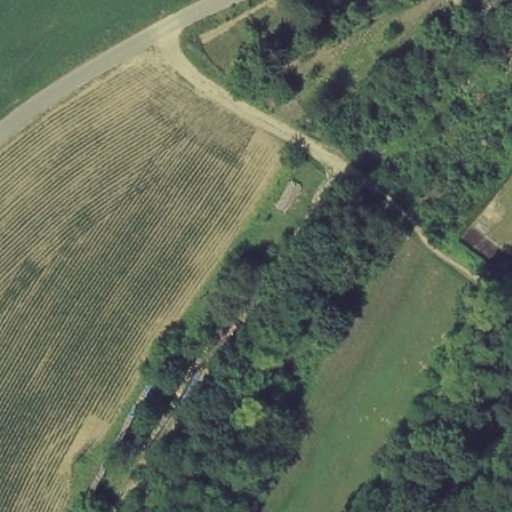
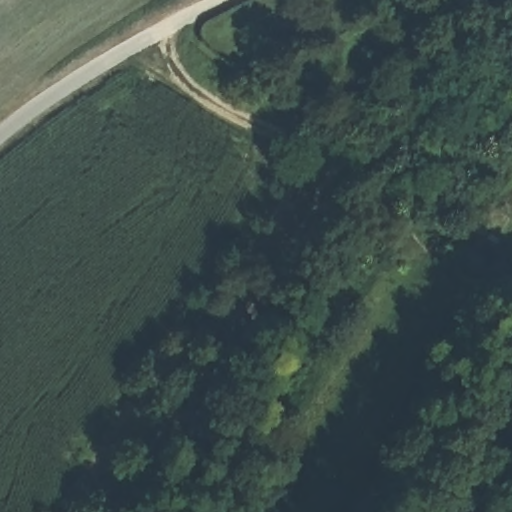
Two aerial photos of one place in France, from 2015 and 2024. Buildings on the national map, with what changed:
unchanged [(254,445),(230,493),(205,483),(233,435),(254,445)]

